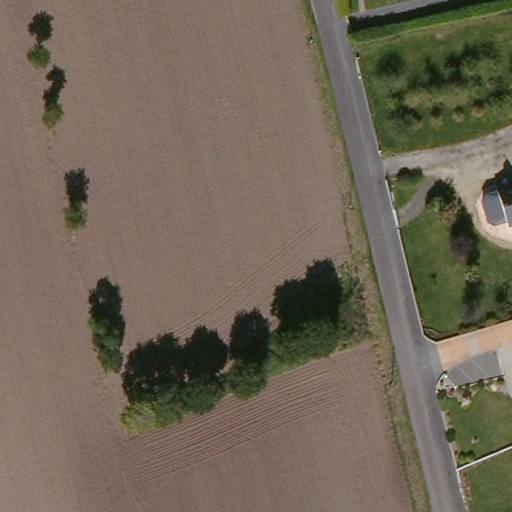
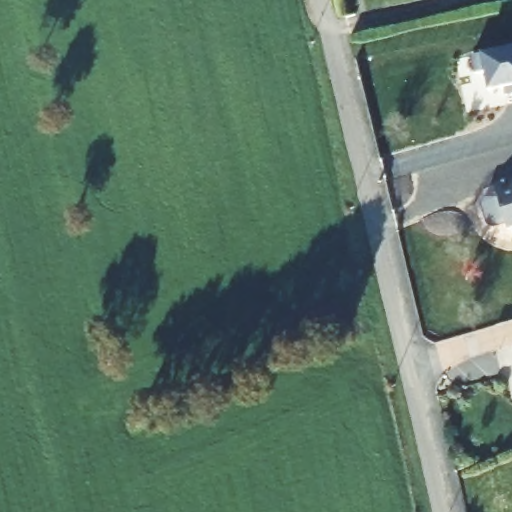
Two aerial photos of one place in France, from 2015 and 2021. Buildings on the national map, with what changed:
new [(509,53),(509,49),(512,48),(512,98),(506,99),(505,91),(490,94),(488,75),(478,76),(475,58),(509,53)]
unchanged [(512,179),(512,227),(509,229),(506,223),(495,226),(489,224),(483,204),(486,198),(498,195),(495,185),(512,179)]

